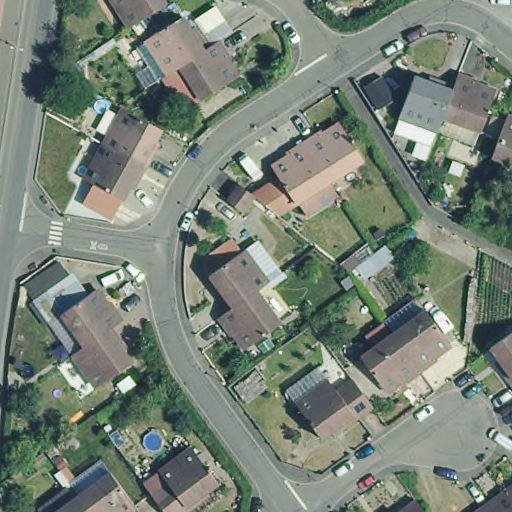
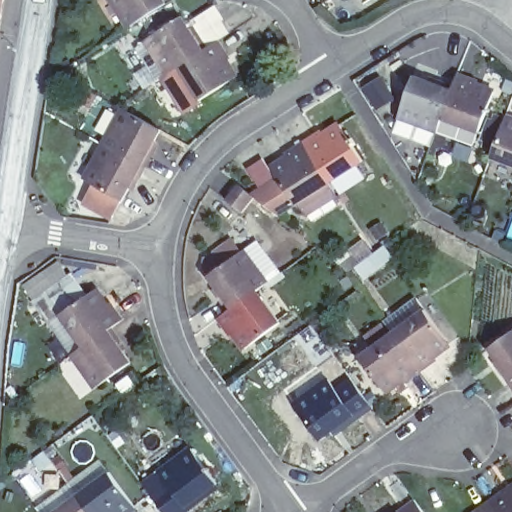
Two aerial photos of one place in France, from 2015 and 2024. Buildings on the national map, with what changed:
unchanged [(2,0),(0,14),(0,0),(2,0)]
unchanged [(167,0),(167,1),(130,26),(114,0),(167,0)]
unchanged [(135,45),(145,39),(144,36),(177,15),(188,31),(193,29),(205,47),(182,62),(179,64),(172,69),(166,72),(156,79),(135,45)]
unchanged [(228,57),(225,59),(236,78),(201,99),(179,64),(182,62),(205,47),(216,40),(217,39),(228,57)]
unchanged [(441,129),(403,114),(419,74),(437,80),(438,77),(458,85),(463,73),(481,79),(479,83),(496,90),(481,130),(477,142),(441,129)]
unchanged [(375,78),(389,99),(372,109),(358,88),(375,78)]
unchanged [(131,202),(95,183),(82,177),(100,143),(120,106),(125,110),(132,114),(163,131),(168,134),(160,150),(162,153),(152,172),(144,189),(140,186),(131,202)]
unchanged [(500,155),(492,152),(506,112),(512,114),(512,175),(495,169),(500,155)]
unchanged [(362,160),(329,182),(303,143),(321,131),(324,135),(340,124),(348,139),(352,136),(357,143),(353,145),(362,160)]
unchanged [(307,215),(298,203),(295,204),(277,216),(262,204),(258,200),(247,215),(226,200),(237,184),(251,194),(280,179),(273,169),(288,159),(285,154),(303,143),(329,182),(326,184),(334,197),(307,215)]
unchanged [(273,324),(238,348),(226,333),(224,335),(212,319),(222,313),(210,295),(213,293),(202,278),(197,270),(199,262),(227,242),(236,254),(239,252),(248,245),(270,277),(261,283),(262,284),(286,315),(273,324)]
unchanged [(46,322),(31,301),(68,275),(83,296),(60,313),(46,322)]
unchanged [(110,328),(85,346),(60,313),(83,296),(92,289),(105,305),(109,303),(121,319),(110,328)]
unchanged [(390,324),(423,300),(447,334),(430,345),(434,349),(417,361),(390,324)]
unchanged [(401,373),(399,369),(383,379),(380,375),(362,351),(359,346),(390,324),(417,361),(401,373)]
unchanged [(85,346),(110,328),(121,344),(118,346),(129,361),(95,387),(73,354),(85,346)]
unchanged [(504,359),(491,343),(512,328),(512,378),(501,363),(504,359)]
unchanged [(297,391),(332,365),(345,384),(354,379),(367,398),(375,408),(360,419),(341,431),(338,427),(323,437),(299,403),(303,400),(297,391)]
unchanged [(160,466),(153,457),(186,433),(192,442),(218,477),(204,488),(206,492),(188,505),(179,512),(169,512),(151,488),(144,478),(160,466)]
unchanged [(43,501),(75,479),(84,491),(116,468),(140,503),(127,512),(51,512),(43,501)]
unchanged [(470,509),(487,497),(505,484),(507,488),(512,484),(512,512),(472,512),(470,509)]
unchanged [(401,509),(417,497),(428,512),(396,512),(401,509)]

